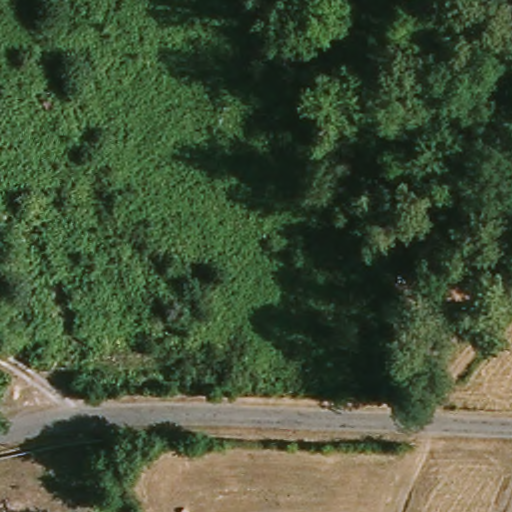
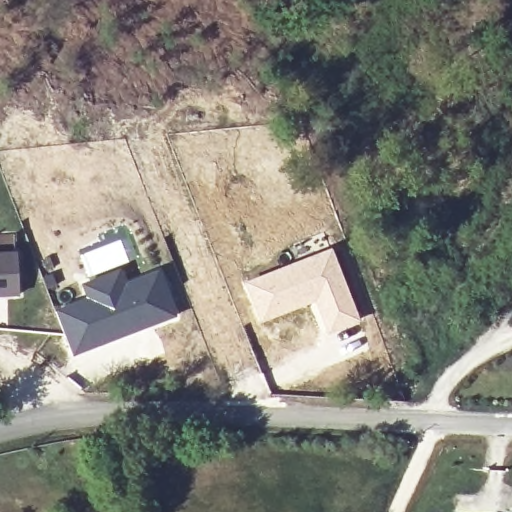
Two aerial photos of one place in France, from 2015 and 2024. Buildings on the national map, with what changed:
new [(330,247),(361,322),(327,336),(311,303),(259,324),(243,282),(330,247)]
new [(19,294),(0,293),(0,253),(19,254),(19,294)]
new [(86,298),(80,284),(123,267),(128,280),(160,267),(178,316),(73,357),(54,309),(86,298)]

